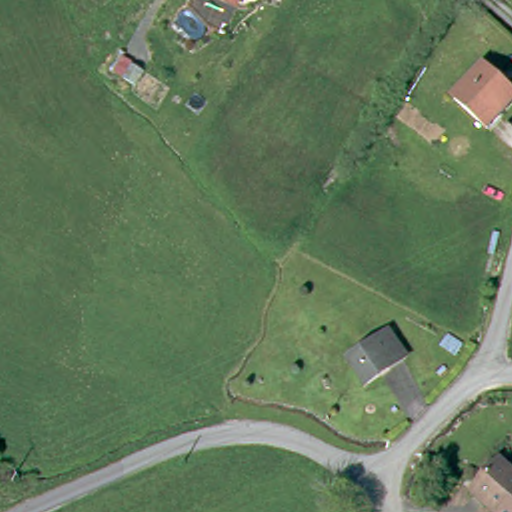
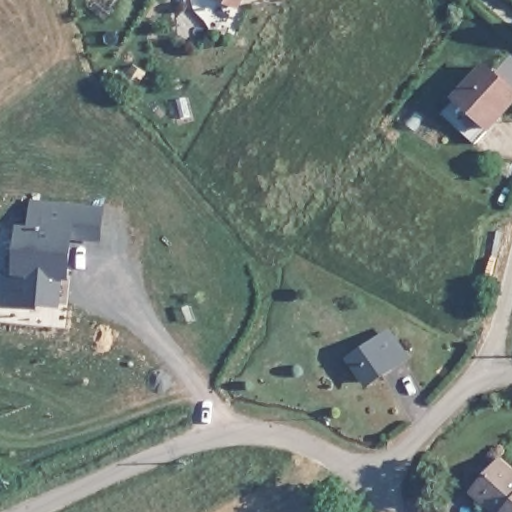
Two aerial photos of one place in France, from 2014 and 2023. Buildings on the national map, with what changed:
unchanged [(489,67),(512,90),(512,104),(487,130),(458,100),(489,67)]
new [(102,207),(100,235),(70,234),(68,263),(60,262),(58,297),(51,297),(50,302),(30,300),(26,289),(22,288),(22,272),(17,271),(20,228),(33,229),(35,204),(102,207)]
unchanged [(368,387),(354,366),(389,343),(404,363),(368,387)]
unchanged [(493,512),(474,497),(498,465),(512,476),(512,512),(493,512)]

